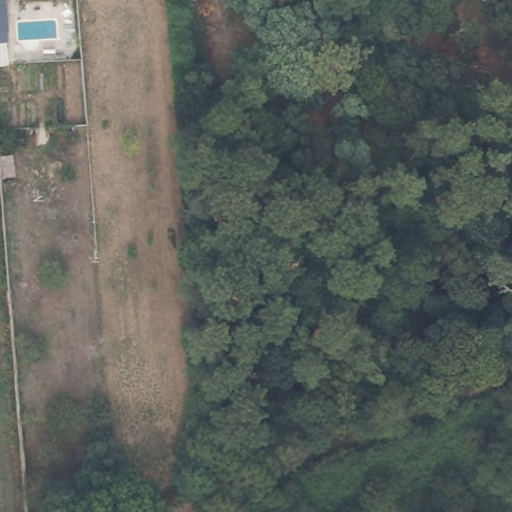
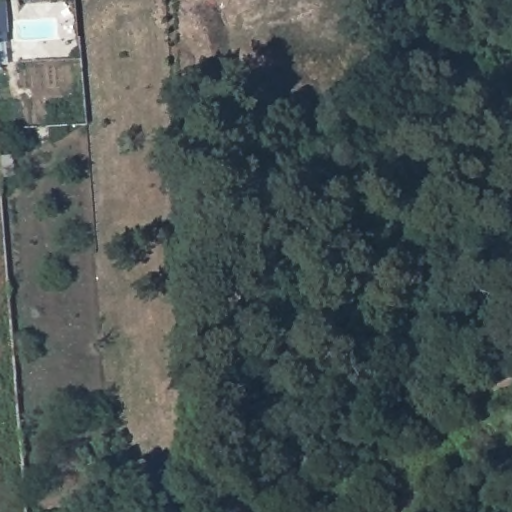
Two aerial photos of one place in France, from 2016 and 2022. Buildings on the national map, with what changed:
unchanged [(9,45),(0,45),(0,3),(6,3),(9,45)]

